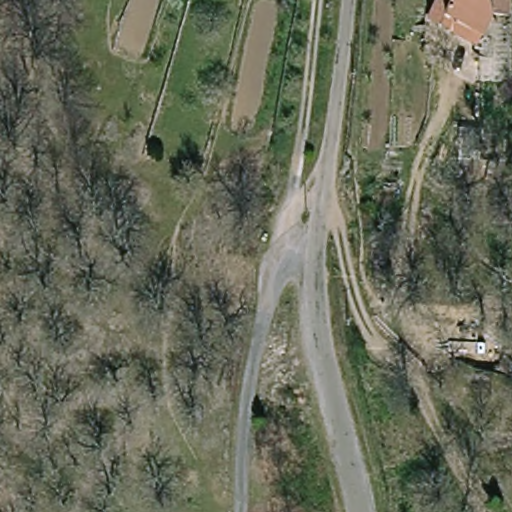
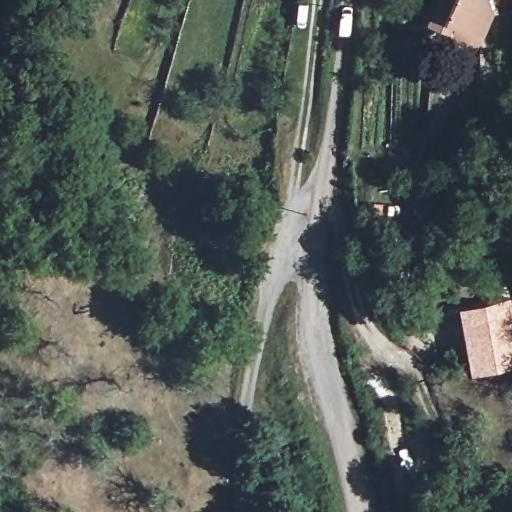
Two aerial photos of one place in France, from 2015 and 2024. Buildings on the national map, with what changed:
unchanged [(505,0),(505,9),(485,9),(484,20),(480,31),(475,35),(439,17),(424,10),(428,0),(505,0)]
unchanged [(482,152),(459,151),(460,118),(482,119),(482,152)]
new [(459,308),(512,298),(512,367),(472,375),(459,308)]

